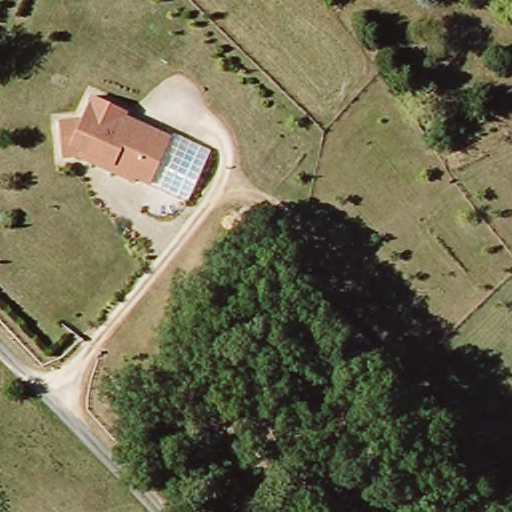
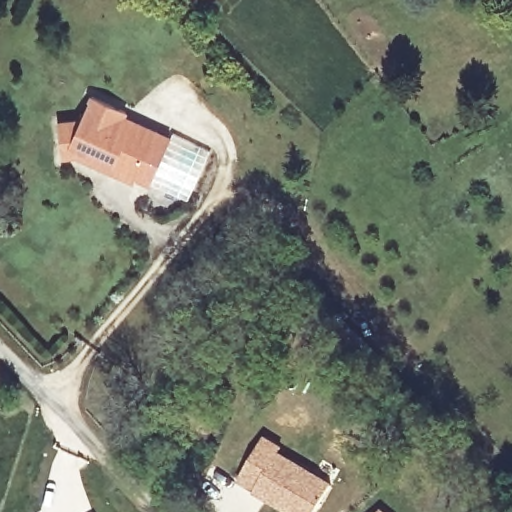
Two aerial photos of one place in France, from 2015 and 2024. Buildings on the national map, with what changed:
unchanged [(58,156),(54,122),(75,119),(86,95),(121,110),(120,114),(150,128),(167,136),(146,181),(132,175),(130,179),(107,168),(74,154),(58,156)]
unchanged [(167,136),(170,129),(211,148),(185,200),(146,181),(167,136)]
unchanged [(368,383),(347,356),(366,340),(388,368),(368,383)]
new [(282,445),(280,450),(332,483),(313,512),(289,512),(235,481),(264,434),(282,445)]
new [(387,512),(376,512),(381,507),(387,512)]

